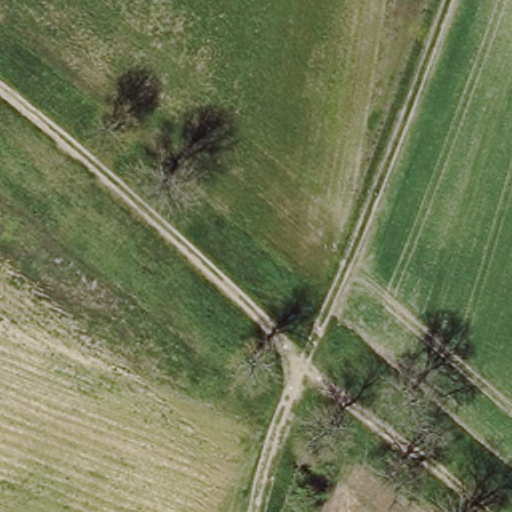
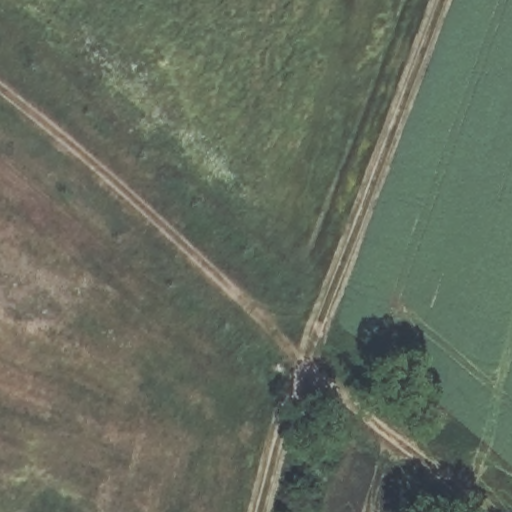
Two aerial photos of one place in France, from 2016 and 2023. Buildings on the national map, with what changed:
[]

